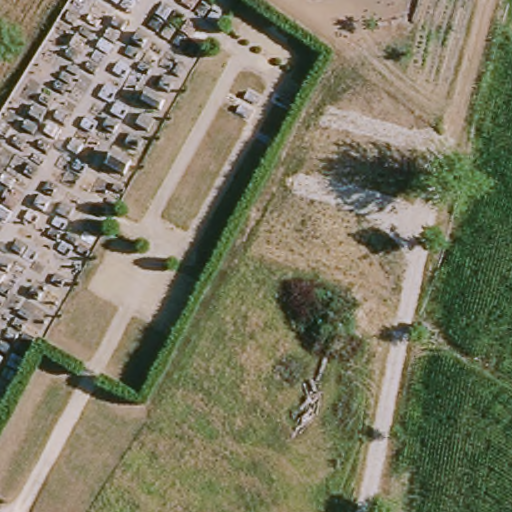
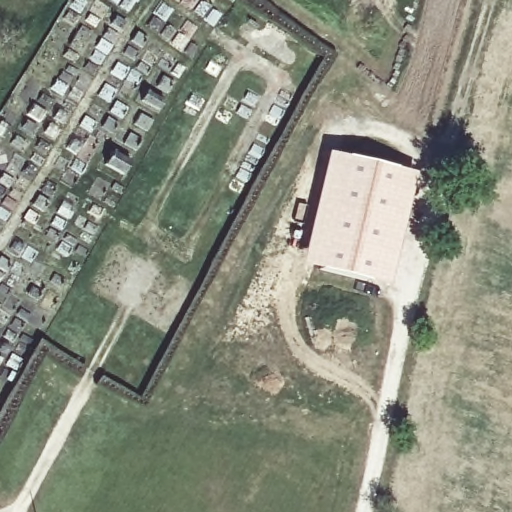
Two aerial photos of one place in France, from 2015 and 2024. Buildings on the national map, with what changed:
new [(325,150),(413,172),(388,285),(299,262),(325,150)]

